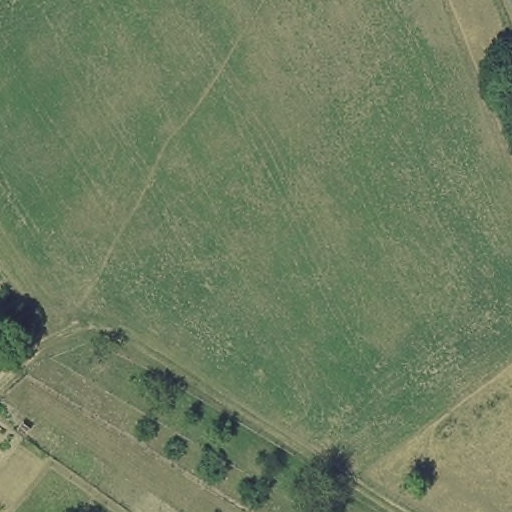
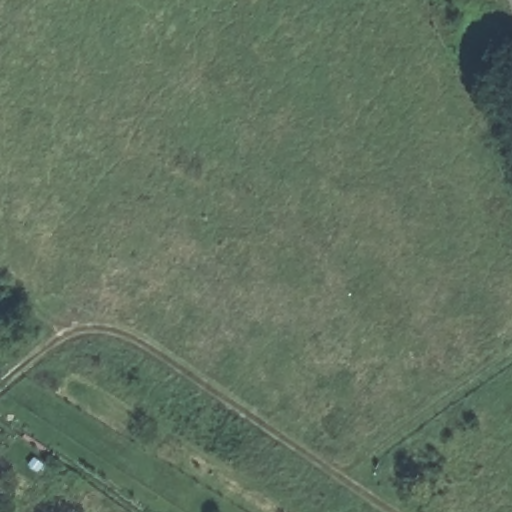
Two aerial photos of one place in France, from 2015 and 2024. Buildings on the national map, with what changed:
[]

